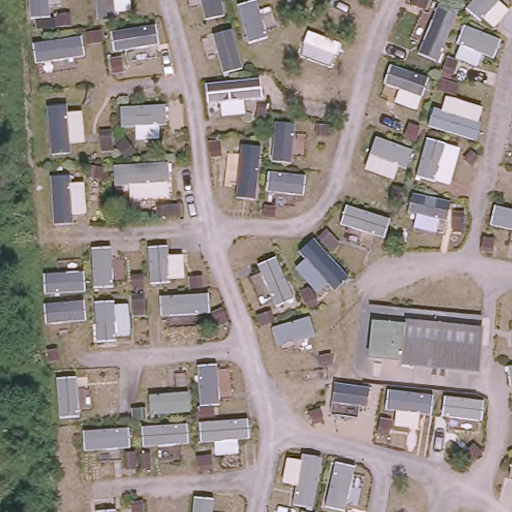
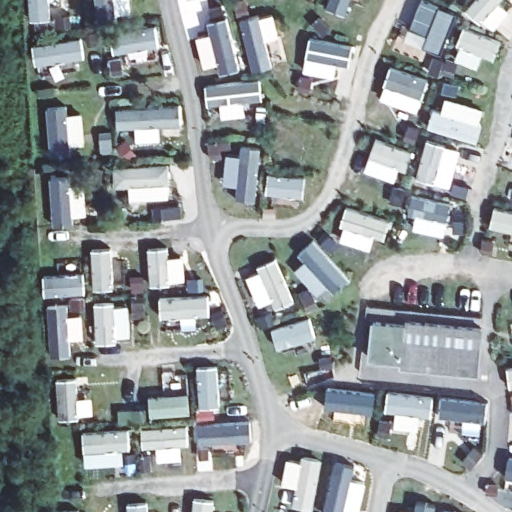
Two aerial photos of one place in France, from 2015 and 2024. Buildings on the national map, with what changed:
unchanged [(474,369),(397,362),(398,359),(365,356),(368,321),(402,323),(402,329),(412,330),(477,336),(474,369)]

